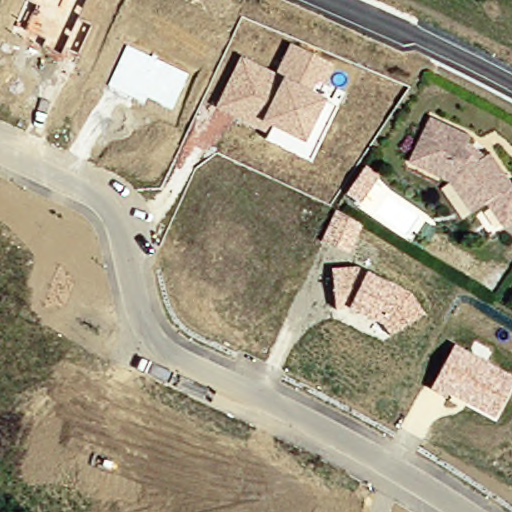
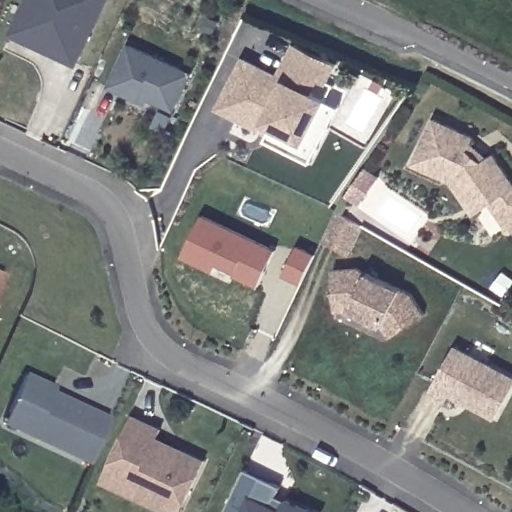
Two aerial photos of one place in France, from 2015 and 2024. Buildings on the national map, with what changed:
new [(91,25),(79,55),(64,49),(61,55),(41,45),(45,38),(27,29),(38,4),(28,0),(87,0),(78,18),(91,25)]
unchanged [(336,106),(309,162),(265,140),(269,133),(215,109),(240,56),(276,74),(292,43),(333,65),(325,84),(317,80),(311,94),(326,100),(336,106)]
unchanged [(192,73),(175,111),(149,100),(146,105),(106,87),(126,44),(192,73)]
unchanged [(464,197),(455,183),(411,163),(431,119),(472,138),(469,143),(491,163),(500,157),(512,176),(512,230),(511,230),(494,204),(487,208),(477,215),(464,197)]
new [(334,211),(361,225),(345,255),(318,242),(334,211)]
new [(256,287),(212,266),(209,272),(176,255),(197,214),(273,250),(256,287)]
unchanged [(389,333),(382,325),(346,309),(336,312),(331,270),(359,268),(368,272),(410,293),(424,316),(389,333)]
new [(0,287),(0,277),(3,279),(0,287)]
unchanged [(494,419),(449,394),(447,399),(429,390),(454,345),(512,376),(512,387),(494,419)]
new [(51,394),(108,420),(85,467),(0,427),(24,375),(53,389),(51,394)]
new [(159,436),(207,459),(183,512),(170,512),(103,481),(133,414),(163,427),(159,436)]
new [(276,485),(272,494),(281,499),(311,512),(220,512),(240,468),(276,485)]

